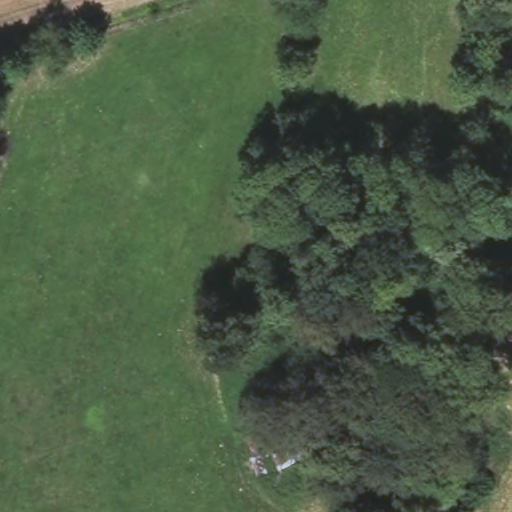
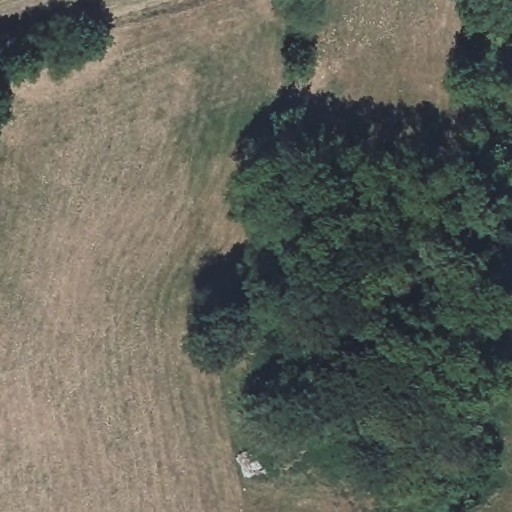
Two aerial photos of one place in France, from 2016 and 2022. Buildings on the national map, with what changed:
unchanged [(280,414),(285,422),(304,415),(316,446),(276,466),(257,421),(280,414)]

